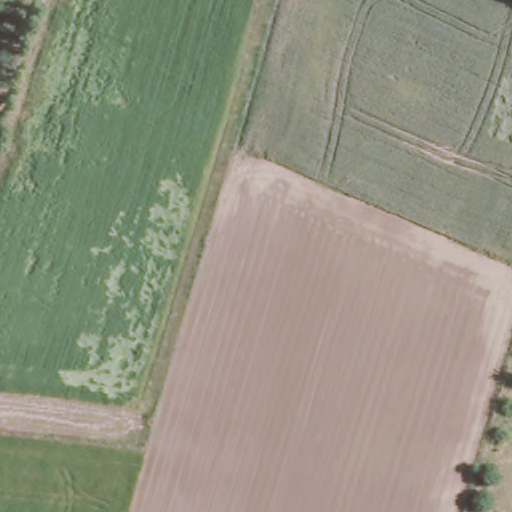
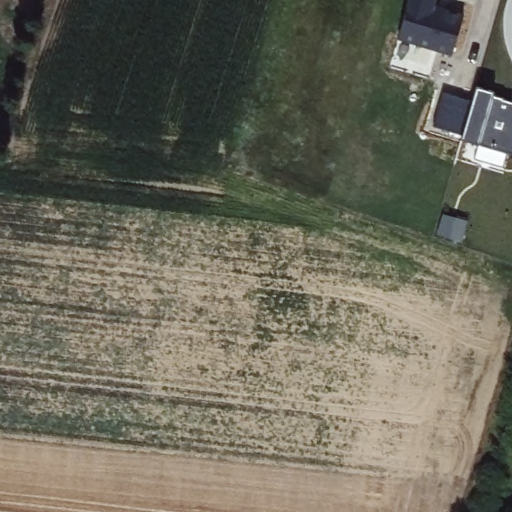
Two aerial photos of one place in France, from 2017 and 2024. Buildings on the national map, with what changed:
new [(412,0),(438,0),(436,6),(467,16),(455,55),(400,40),(412,0)]
new [(462,138),(464,134),(465,135),(475,101),(474,100),(478,86),(494,91),(492,94),(503,98),(502,99),(512,102),(512,152),(479,142),(462,138)]
new [(445,92),(475,101),(465,135),(435,126),(445,92)]
new [(462,241),(437,234),(442,214),(446,217),(447,215),(468,221),(462,241)]

